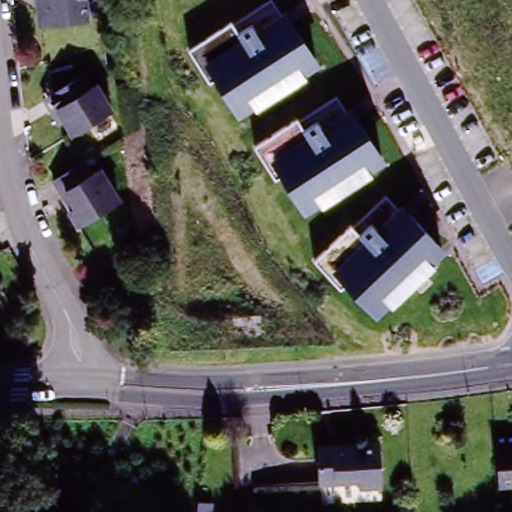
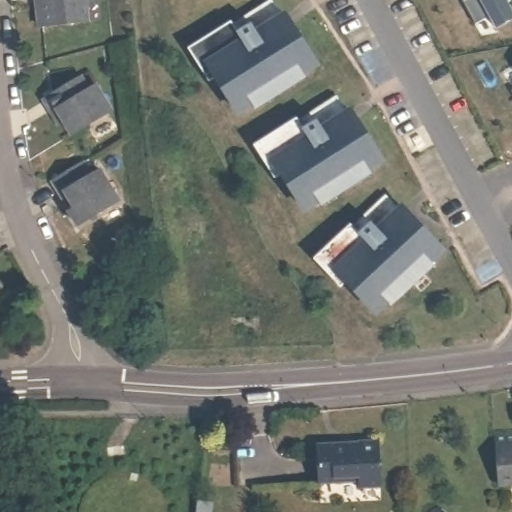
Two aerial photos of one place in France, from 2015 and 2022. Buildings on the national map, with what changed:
unchanged [(84,0),(87,25),(36,30),(34,13),(32,13),(31,0),(84,0)]
unchanged [(215,80),(209,84),(188,49),(232,21),(268,0),(275,0),(284,10),(319,67),(239,119),(215,80)]
new [(501,32),(492,16),(478,24),(464,0),(509,0),(512,6),(512,26),(501,32)]
unchanged [(42,99),(48,95),(81,77),(89,89),(96,85),(112,113),(70,135),(62,121),(56,124),(42,99)]
unchanged [(304,215),(281,174),(273,180),(253,147),(296,120),(338,96),(349,109),(386,162),(304,215)]
unchanged [(59,184),(90,166),(97,179),(106,174),(124,205),(81,228),(73,213),(75,212),(66,197),(59,184)]
unchanged [(444,252),(376,318),(346,286),(342,289),(315,260),(351,226),(386,195),(400,203),(444,252)]
unchanged [(488,433),(506,432),(507,444),(512,443),(512,481),(492,483),(488,433)]
unchanged [(375,442),(378,487),(358,488),(358,482),(318,484),(316,444),(375,442)]

